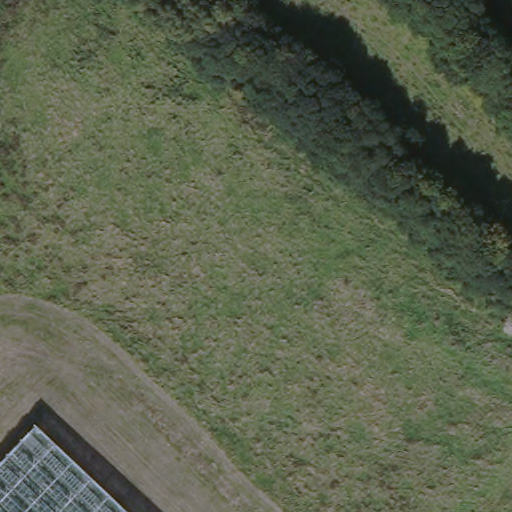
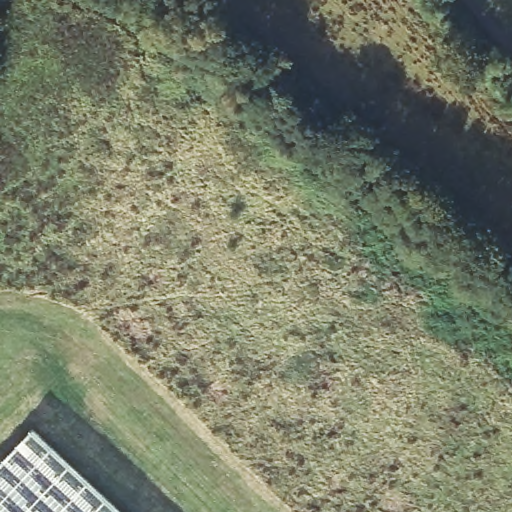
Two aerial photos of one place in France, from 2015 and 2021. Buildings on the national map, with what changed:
unchanged [(31,423),(127,512),(0,512),(0,457),(31,423)]

